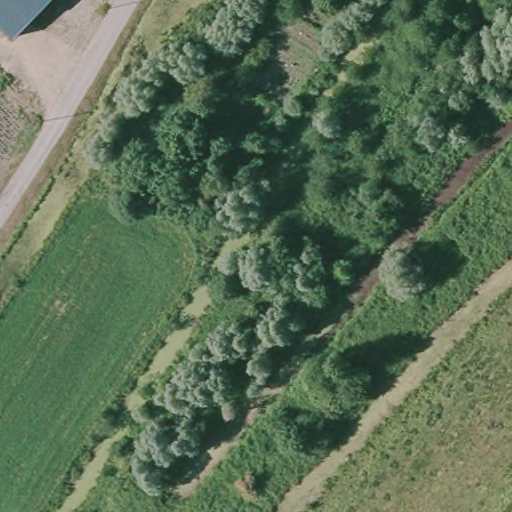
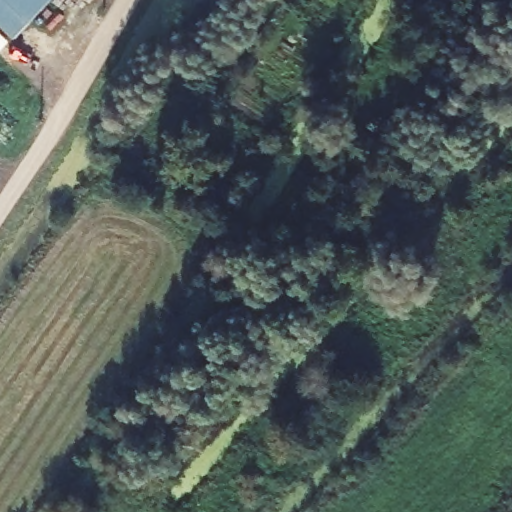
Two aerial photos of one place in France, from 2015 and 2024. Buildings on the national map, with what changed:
unchanged [(0,20),(0,0),(50,0),(17,36),(0,20)]

